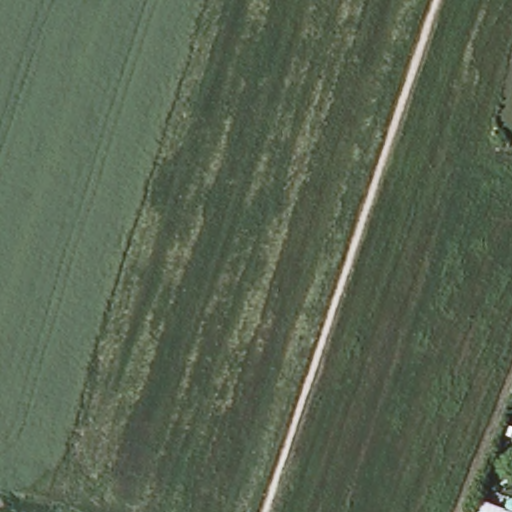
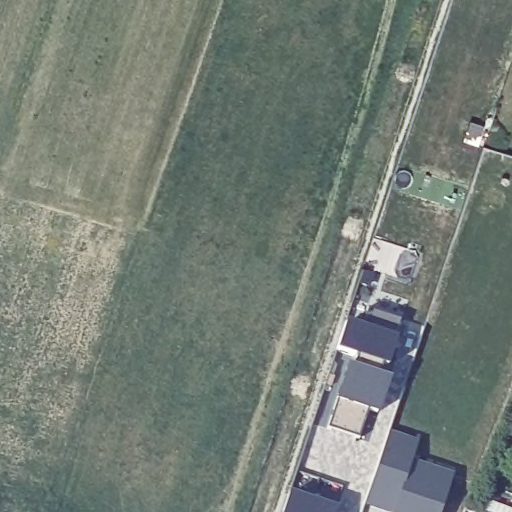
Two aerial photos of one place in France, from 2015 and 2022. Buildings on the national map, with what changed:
new [(399,319),(384,379),(389,381),(378,417),(365,414),(358,438),(329,428),(346,366),(354,369),(356,359),(334,352),(344,322),(362,328),(368,309),(399,319)]
new [(381,448),(453,472),(439,512),(390,512),(364,502),(381,448)]
new [(332,512),(283,512),(289,496),(333,510),(332,512)]
unchanged [(500,512),(482,512),(484,506),(500,512)]

